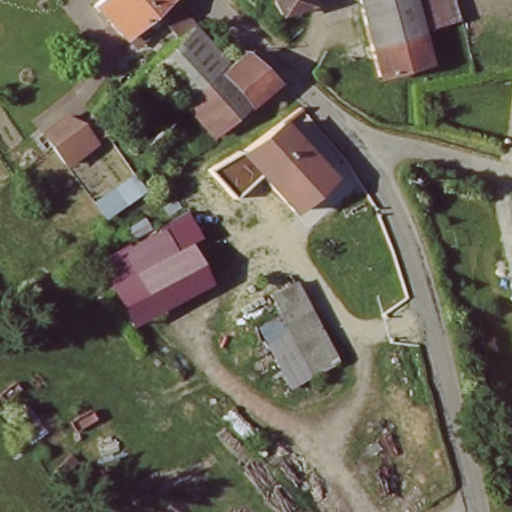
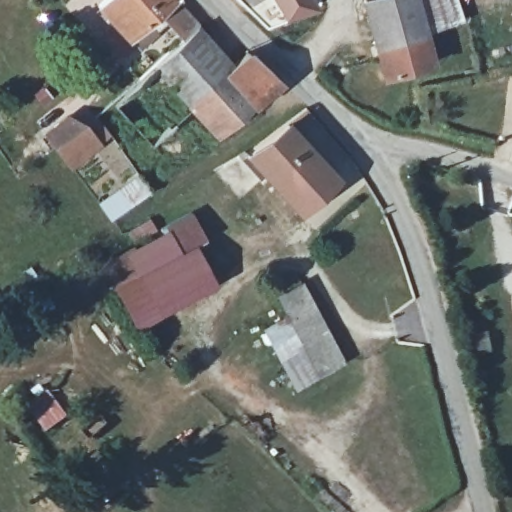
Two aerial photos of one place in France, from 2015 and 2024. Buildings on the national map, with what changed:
unchanged [(99,8),(108,0),(185,0),(233,61),(244,54),(278,85),(221,135),(160,71),(174,49),(151,17),(137,30),(127,41),(99,8)]
unchanged [(276,0),(315,0),(318,5),(290,22),(276,0)]
unchanged [(363,0),(416,0),(425,30),(436,65),(383,85),(363,0)]
unchanged [(416,0),(453,0),(460,20),(425,30),(416,0)]
unchanged [(111,138),(68,169),(39,135),(66,113),(111,138)]
unchanged [(289,121),(302,140),(264,172),(248,153),(289,121)]
unchanged [(262,200),(279,190),(264,172),(302,140),(335,180),(312,199),(296,210),(279,222),(262,200)]
unchanged [(244,149),(248,153),(264,172),(234,194),(227,187),(216,172),(244,149)]
unchanged [(99,200),(139,176),(150,192),(108,220),(99,200)]
unchanged [(206,240),(195,245),(217,285),(134,328),(99,261),(134,242),(130,231),(154,220),(158,229),(191,213),(206,240)]
unchanged [(346,365),(296,391),(262,328),(286,316),(276,295),(304,281),(346,365)]

